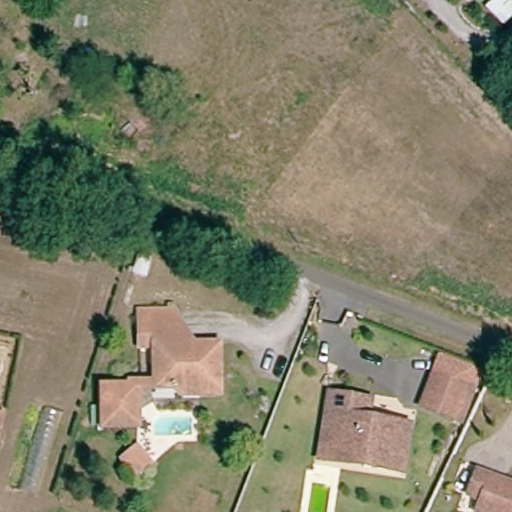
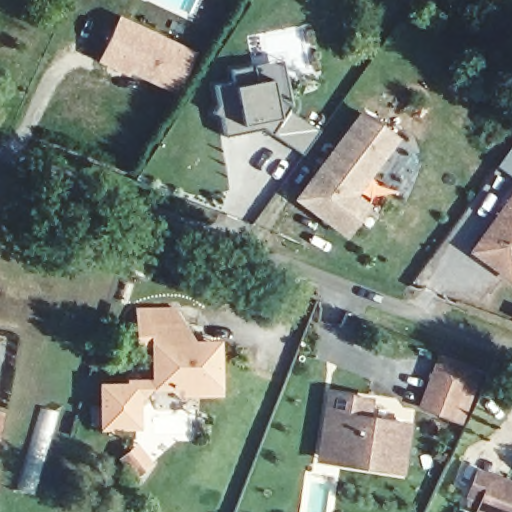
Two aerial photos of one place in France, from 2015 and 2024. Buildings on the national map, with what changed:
new [(197,52),(177,95),(130,74),(129,76),(96,62),(119,16),(197,52)]
new [(235,80),(232,69),(283,60),(291,110),(320,131),(304,154),(266,128),(227,134),(224,115),(216,111),(220,105),(217,85),(235,80)]
new [(363,111),(399,135),(357,194),(372,204),(350,234),(300,200),(363,111)]
new [(512,148),(512,174),(500,165),(512,148)]
unchanged [(502,275),(481,259),(485,255),(475,246),(512,197),(512,252),(512,262),(502,275)]
unchanged [(166,385),(155,385),(155,366),(155,345),(142,345),(146,308),(184,308),(193,345),(214,345),(214,395),(189,397),(171,398),(171,385),(166,385)]
unchanged [(460,410),(451,406),(425,396),(440,360),(465,370),(475,373),(460,410)]
unchanged [(136,385),(137,420),(102,421),(101,386),(136,385)]
unchanged [(326,418),(328,400),(369,405),(366,425),(408,431),(401,475),(360,470),(318,463),(326,418)]
unchanged [(0,422),(4,423),(0,437),(0,422)]
unchanged [(135,441),(151,456),(140,469),(123,454),(135,441)]
unchanged [(476,501),(480,490),(466,483),(476,461),(490,467),(512,475),(512,512),(502,512),(495,510),(476,501)]

